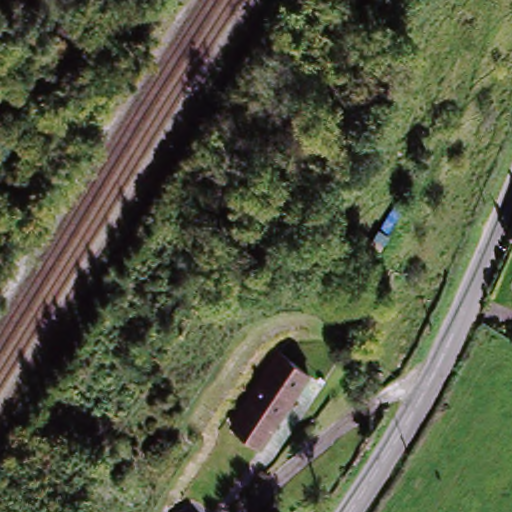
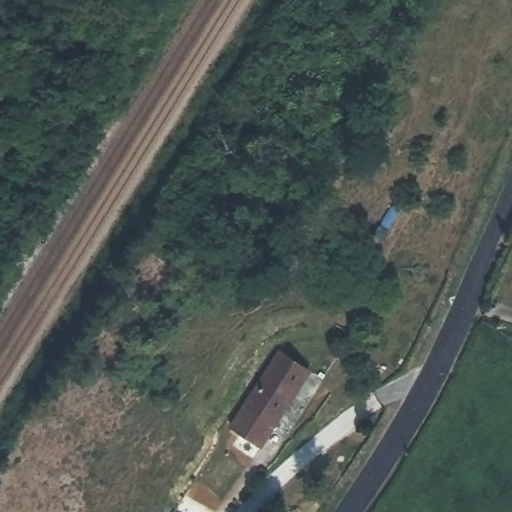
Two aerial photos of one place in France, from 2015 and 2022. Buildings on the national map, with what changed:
unchanged [(512,216),(512,236),(505,233),(512,216)]
unchanged [(311,371),(262,449),(229,428),(277,351),(311,371)]

